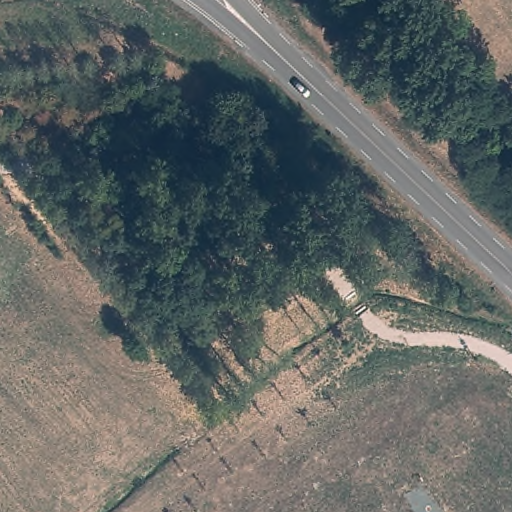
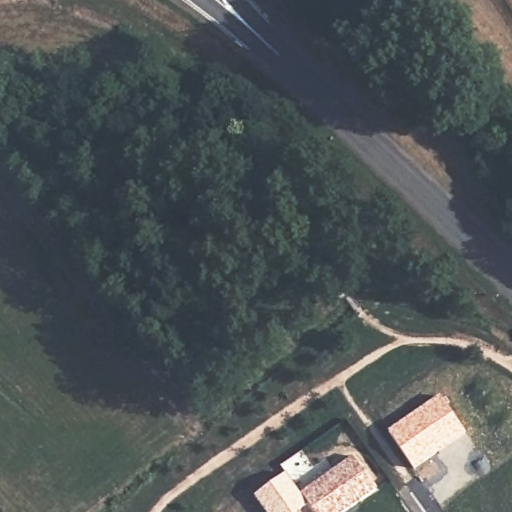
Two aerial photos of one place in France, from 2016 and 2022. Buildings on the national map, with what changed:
new [(440,395),(465,432),(413,469),(387,432),(440,395)]
new [(378,489),(344,512),(313,512),(300,494),(355,455),(378,489)]

